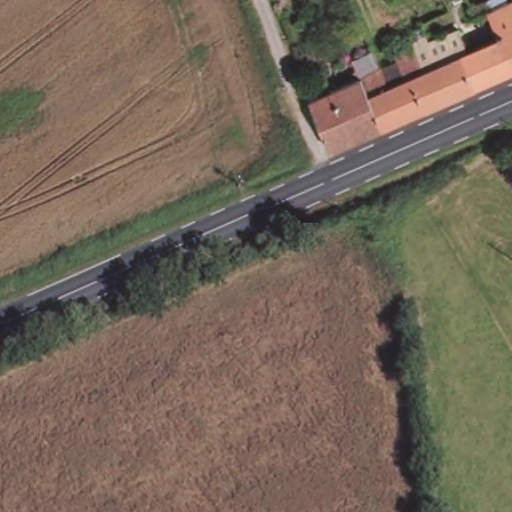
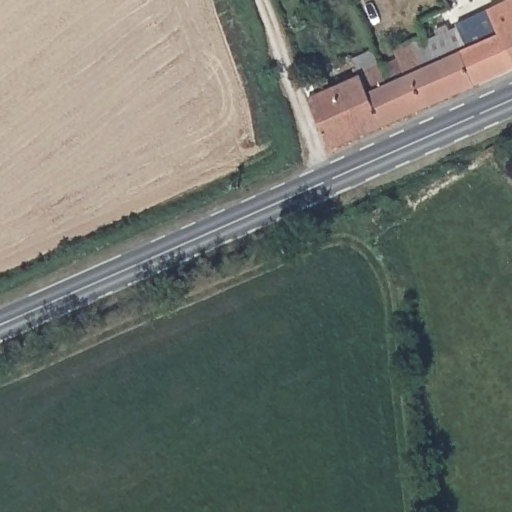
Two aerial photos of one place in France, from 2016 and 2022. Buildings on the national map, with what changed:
unchanged [(462,55),(461,53),(424,69),(423,68),(411,41),(426,34),(430,41),(459,28),(471,49),(502,33),(489,9),(474,16),(469,7),(482,0),(512,0),(512,69),(476,85),(468,67),(462,55)]
unchanged [(438,102),(382,127),(362,78),(382,69),(390,85),(407,77),(393,49),(411,41),(423,68),(424,69),(461,53),(462,55),(468,67),(476,85),(438,102)]
unchanged [(362,78),(382,127),(332,149),(304,84),(325,75),(331,91),(360,78),(352,61),(373,50),(381,67),(382,69),(362,78)]
unchanged [(451,171),(441,160),(455,154),(462,162),(451,171)]

